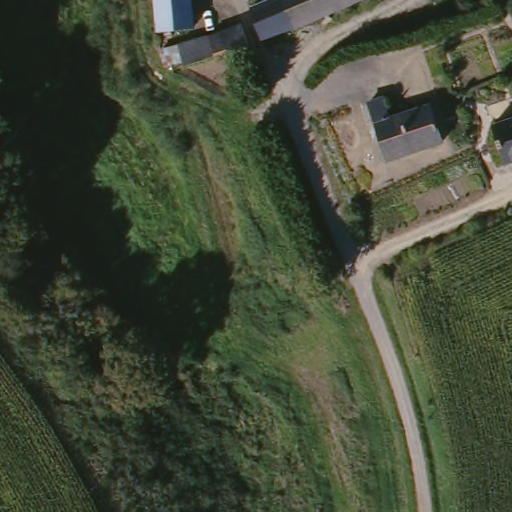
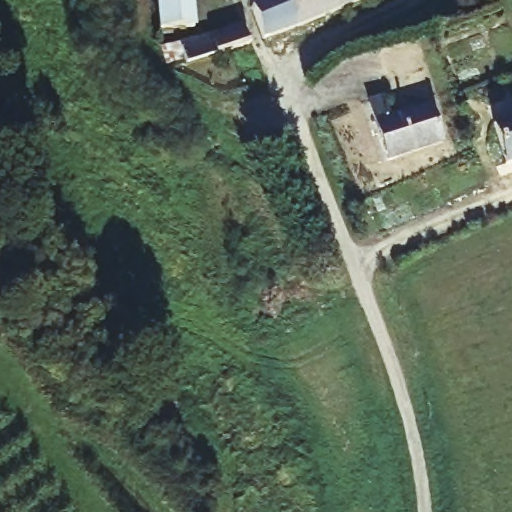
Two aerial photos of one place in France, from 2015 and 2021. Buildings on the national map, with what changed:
unchanged [(148,0),(182,0),(185,40),(151,42),(148,0)]
unchanged [(260,44),(247,11),(273,0),(369,0),(260,44)]
unchanged [(199,45),(230,33),(237,54),(171,77),(165,55),(199,45)]
unchanged [(384,103),(392,123),(431,110),(445,147),(389,166),(369,108),(384,103)]
unchanged [(512,166),(502,169),(488,130),(512,122),(512,166)]

